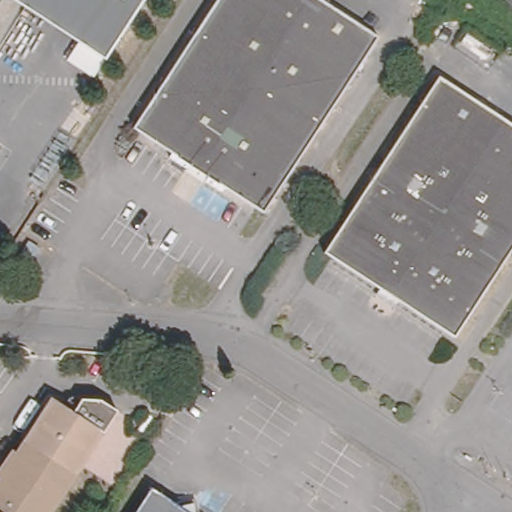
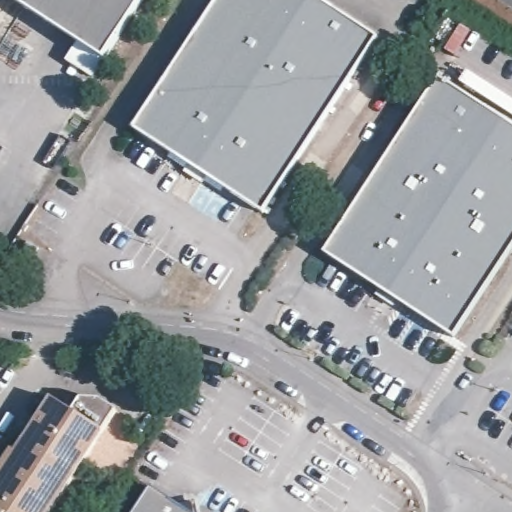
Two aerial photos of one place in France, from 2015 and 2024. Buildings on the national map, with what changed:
unchanged [(21,0),(144,0),(108,56),(21,0)]
unchanged [(173,148),(136,124),(218,0),(327,0),(382,35),(266,210),(229,187),(225,191),(208,180),(205,183),(188,172),(190,167),(172,155),(173,148)]
unchanged [(437,79),(512,127),(512,252),(455,340),(401,305),(394,312),(373,299),(378,291),(326,257),(437,79)]
unchanged [(39,249),(27,266),(16,258),(26,241),(39,249)]
unchanged [(124,413),(82,476),(30,442),(59,400),(80,414),(89,401),(107,401),(124,413)]
unchanged [(5,479),(2,476),(15,453),(21,455),(30,442),(82,476),(57,512),(0,512),(0,485),(5,479)]
unchanged [(152,486),(176,502),(197,503),(199,512),(135,512),(152,486)]

